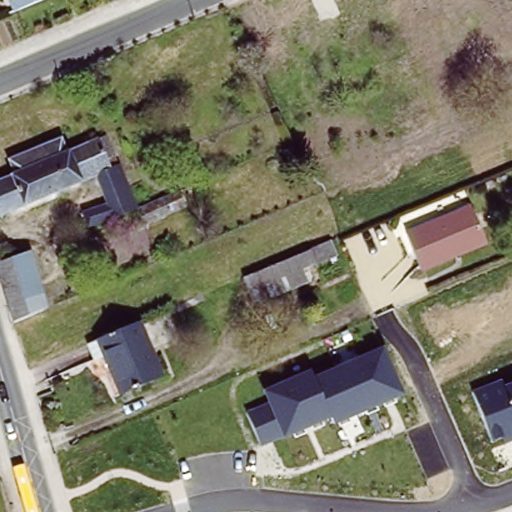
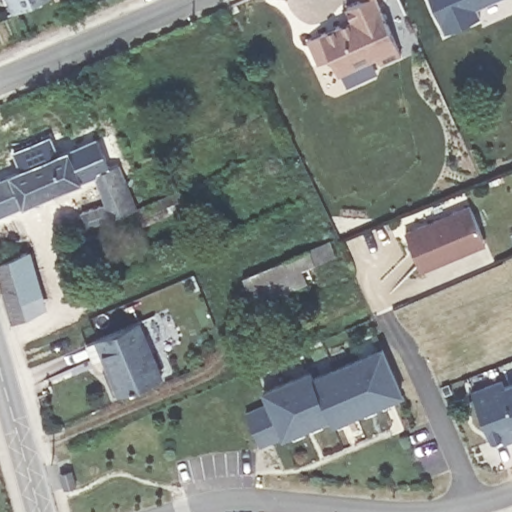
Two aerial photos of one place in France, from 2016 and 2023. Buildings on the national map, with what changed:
unchanged [(14,15),(7,0),(49,0),(14,15)]
new [(353,19),(347,6),(359,0),(378,0),(402,54),(381,63),(378,56),(339,74),(332,58),(319,64),(308,39),(353,19)]
new [(481,18),(446,34),(430,0),(496,0),(477,9),(481,18)]
unchanged [(140,228),(134,211),(84,229),(79,215),(103,206),(92,180),(70,189),(58,194),(47,161),(63,155),(101,140),(122,191),(135,185),(142,201),(151,197),(154,204),(175,196),(181,213),(140,228)]
unchanged [(0,218),(0,182),(7,179),(2,166),(58,143),(63,155),(47,161),(58,194),(0,218)]
unchanged [(487,247),(422,273),(405,233),(469,206),(487,247)]
unchanged [(319,265),(311,268),(316,281),(257,305),(246,279),(313,251),(319,265)]
unchanged [(43,311),(12,323),(0,280),(0,262),(27,254),(43,311)]
unchanged [(144,321),(165,378),(124,393),(108,355),(97,360),(90,344),(144,321)]
unchanged [(406,395),(331,426),(329,418),(260,447),(247,412),(267,403),(261,389),(313,368),(316,377),(383,347),(406,395)]
unchanged [(503,437),(492,441),(473,391),(501,380),(504,386),(512,383),(512,441),(506,443),(503,437)]

